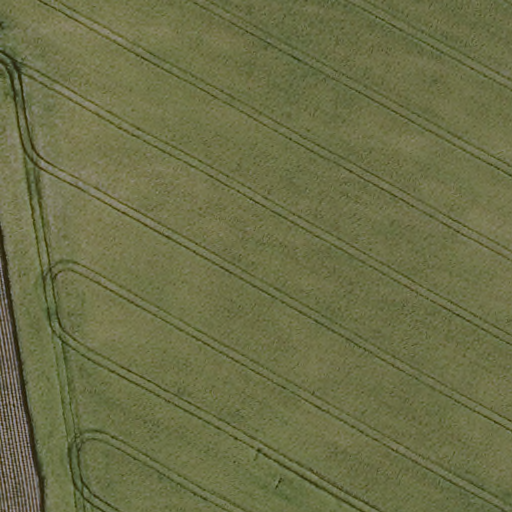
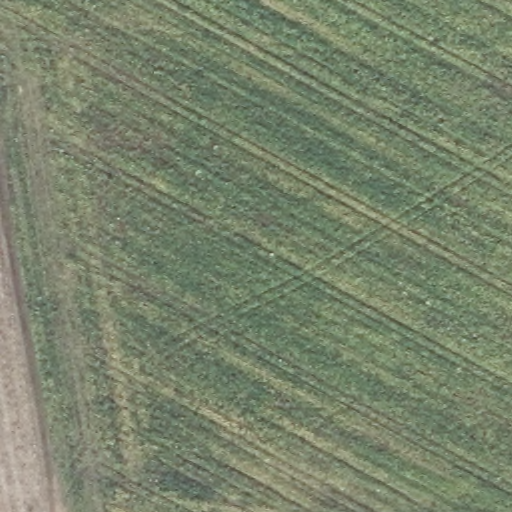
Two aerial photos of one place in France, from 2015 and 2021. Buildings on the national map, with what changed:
[]

